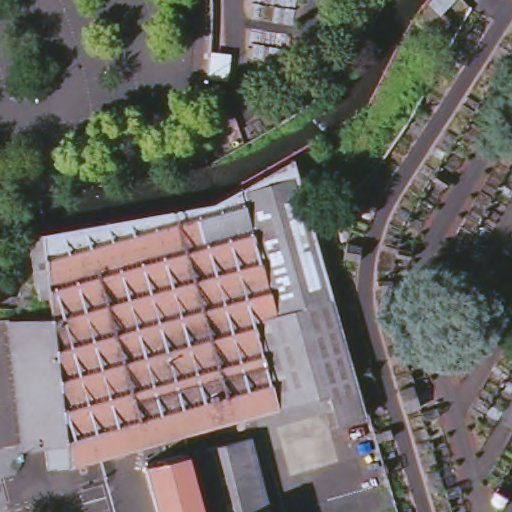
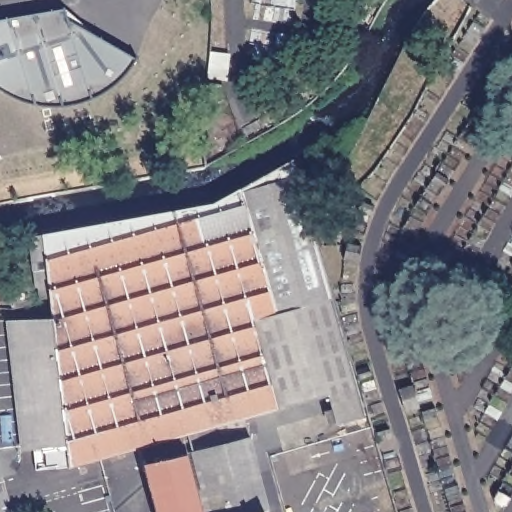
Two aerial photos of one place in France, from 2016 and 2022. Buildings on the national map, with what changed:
new [(118,80),(96,95),(70,102),(42,104),(16,96),(0,87),(0,0),(147,0),(149,10),(134,59),(118,80)]
unchanged [(209,48),(231,49),(228,81),(206,79),(209,48)]
unchanged [(216,209),(292,162),(369,420),(340,427),(329,393),(62,469),(38,472),(36,450),(12,452),(1,322),(53,320),(52,307),(41,298),(37,299),(31,241),(216,209)]
unchanged [(242,436),(265,512),(160,512),(147,464),(242,436)]

